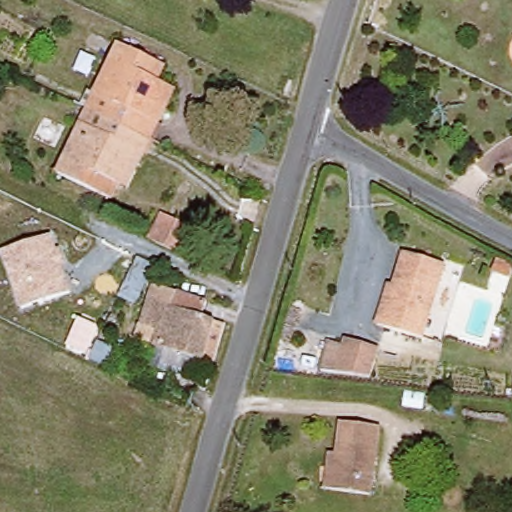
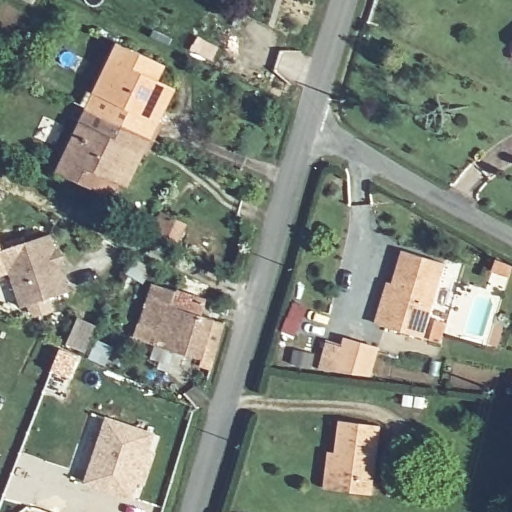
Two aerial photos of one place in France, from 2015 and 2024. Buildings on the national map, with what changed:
unchanged [(112,39),(158,61),(151,75),(178,89),(161,123),(152,119),(144,135),(92,110),(80,103),(112,39)]
unchanged [(78,182),(49,168),(72,118),(85,124),(92,110),(144,135),(122,181),(87,164),(78,182)]
unchanged [(177,257),(162,251),(157,248),(149,244),(161,218),(170,222),(188,231),(177,257)]
unchanged [(70,292),(19,308),(0,253),(0,251),(50,236),(70,292)]
unchanged [(402,249),(448,261),(428,337),(392,327),(376,322),(389,278),(394,280),(402,249)]
unchanged [(196,315),(217,323),(205,360),(149,340),(154,327),(136,320),(150,282),(201,301),(196,315)]
new [(78,318),(97,326),(86,352),(68,344),(78,318)]
unchanged [(341,344),(374,353),(366,383),(314,376),(321,347),(339,351),(341,344)]
new [(142,486),(135,483),(129,498),(84,483),(108,419),(152,435),(147,450),(154,453),(142,486)]
unchanged [(377,428),(370,493),(330,488),(337,424),(377,428)]

